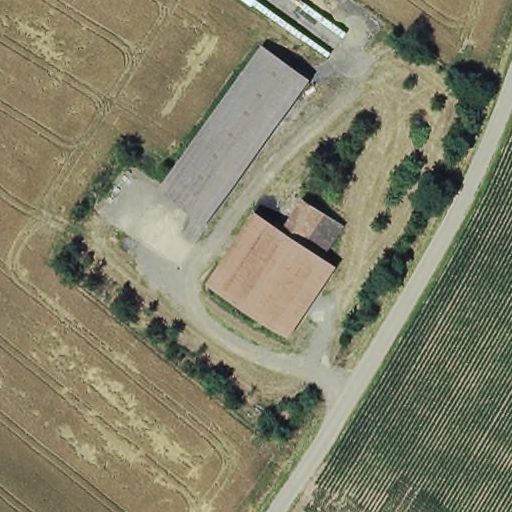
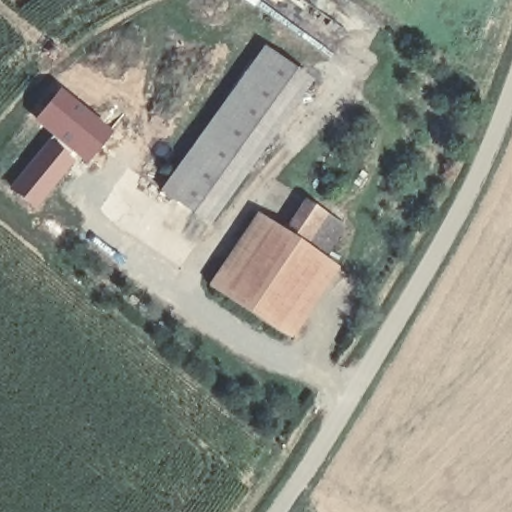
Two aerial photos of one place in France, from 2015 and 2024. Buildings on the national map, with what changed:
new [(242,0),(260,0),(254,9),(242,0)]
unchanged [(317,88),(210,229),(158,192),(261,51),(317,88)]
new [(61,87),(113,131),(85,164),(75,156),(73,157),(50,135),(33,120),(61,87)]
new [(50,135),(73,157),(75,160),(34,210),(8,187),(50,135)]
unchanged [(346,229),(330,262),(343,269),(294,345),(211,288),(254,212),(285,228),(302,200),(346,229)]

